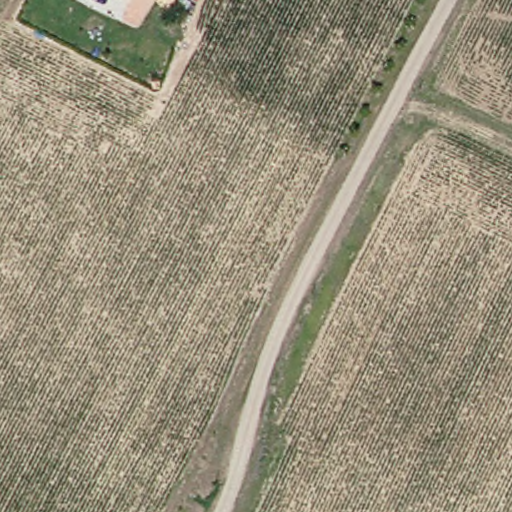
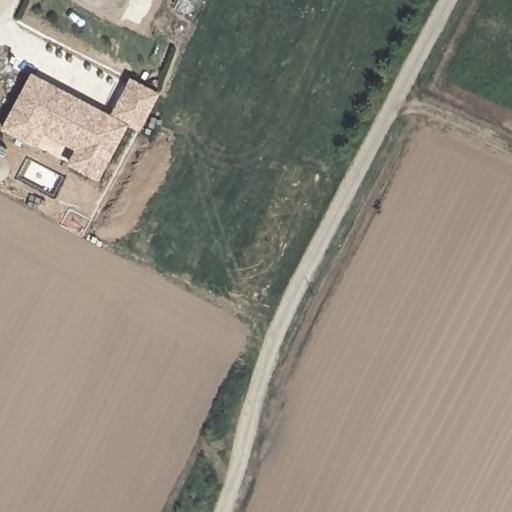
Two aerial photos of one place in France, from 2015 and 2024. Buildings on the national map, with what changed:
new [(30,74),(110,116),(129,79),(159,94),(138,133),(127,127),(96,183),(65,165),(73,151),(42,134),(34,149),(0,130),(30,74)]

